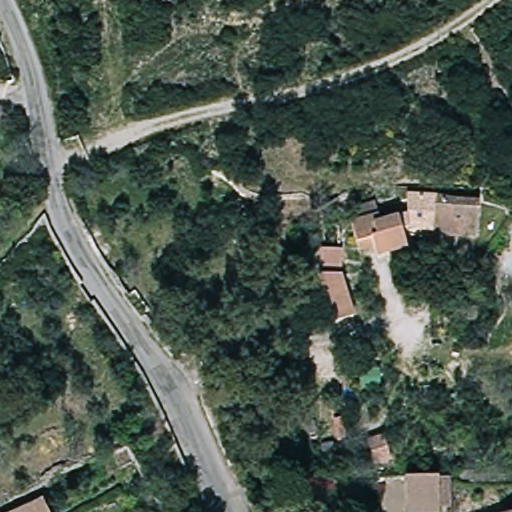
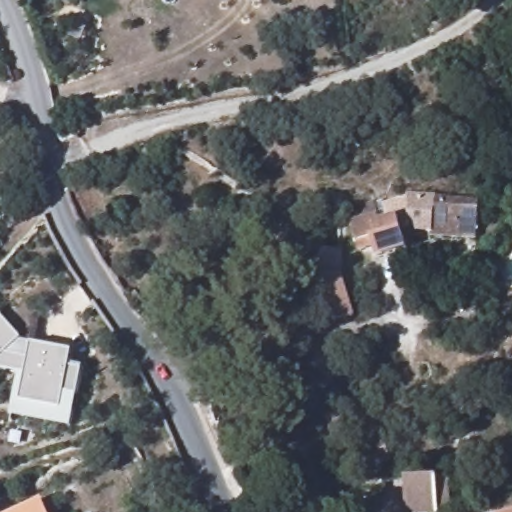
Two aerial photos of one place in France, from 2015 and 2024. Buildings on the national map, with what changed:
unchanged [(483,201),(480,242),(435,238),(436,235),(412,232),(412,230),(405,234),(410,250),(378,258),(375,250),(362,252),(355,222),(382,215),(384,221),(401,219),(411,216),(411,215),(410,195),(412,195),(456,199),(483,201)]
unchanged [(332,322),(317,275),(318,248),(340,248),(339,275),(352,316),(332,322)]
new [(68,394),(79,396),(72,430),(10,417),(18,374),(0,370),(0,316),(23,341),(22,342),(32,345),(74,353),(72,365),(73,365),(67,394),(68,394)]
new [(84,367),(79,396),(67,394),(73,365),(84,367)]
unchanged [(364,440),(382,435),(389,461),(371,466),(364,440)]
unchanged [(432,512),(401,512),(400,481),(431,481),(432,512)]
unchanged [(17,512),(42,501),(46,512),(17,512)]

